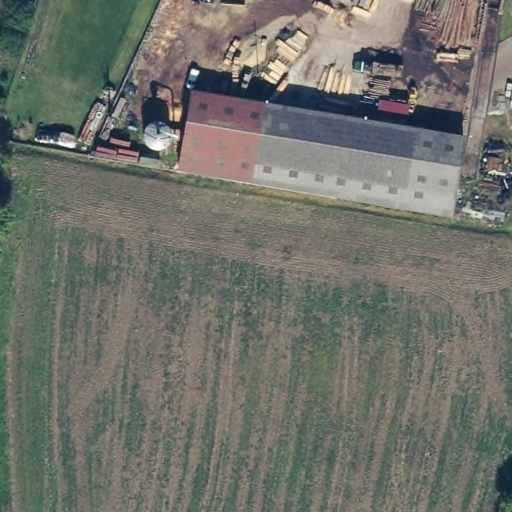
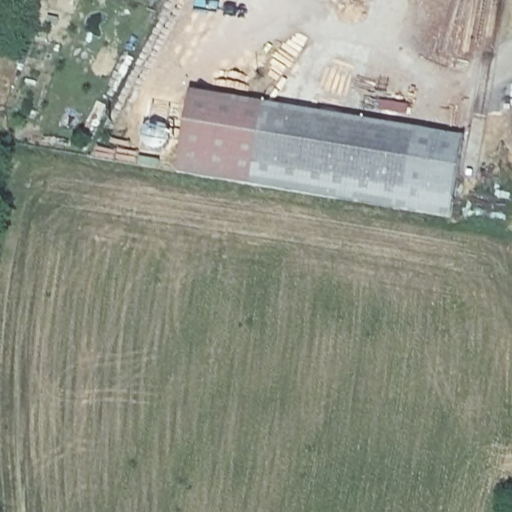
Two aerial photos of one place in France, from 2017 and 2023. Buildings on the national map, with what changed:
unchanged [(179,172),(189,96),(190,94),(192,94),(457,132),(459,133),(459,135),(447,213),(447,215),(445,215),(312,196),(311,196),(310,195),(194,176),(193,176),(192,176),(181,175),(179,174),(179,172)]

